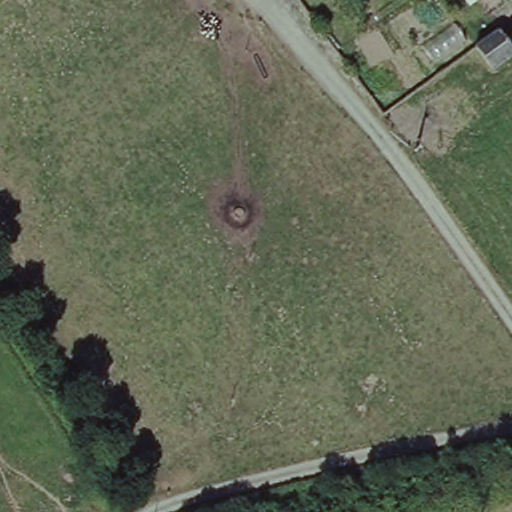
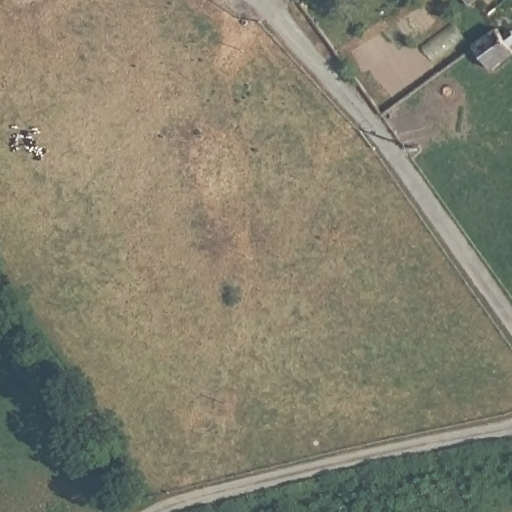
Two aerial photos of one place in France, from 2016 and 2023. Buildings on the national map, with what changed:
unchanged [(495,22),(500,28),(512,19),(512,54),(493,68),(472,39),(495,22)]

